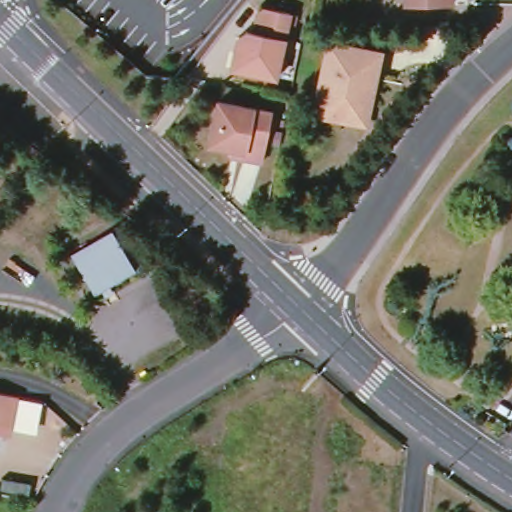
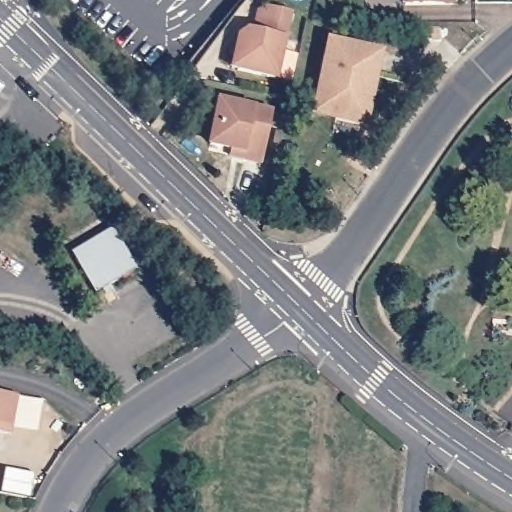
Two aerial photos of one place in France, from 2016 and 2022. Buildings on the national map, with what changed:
unchanged [(408,9),(408,0),(454,0),(454,9),(446,9),(408,9)]
unchanged [(238,34),(247,29),(254,30),(258,11),(264,8),(290,13),(290,14),(297,15),(295,25),(288,24),(276,78),(236,69),(230,68),(235,51),(238,34)]
unchanged [(342,121),(319,116),(332,47),(379,56),(374,80),(377,81),(370,113),(368,126),(342,121)]
unchanged [(209,144),(217,101),(272,112),(262,161),(244,158),(230,155),(230,149),(209,144)]
unchanged [(135,270),(95,293),(72,253),(112,229),(135,270)]
unchanged [(9,433),(0,431),(0,392),(17,396),(9,433)]

